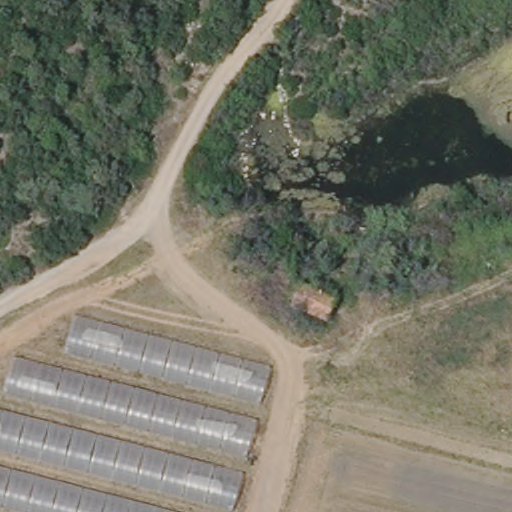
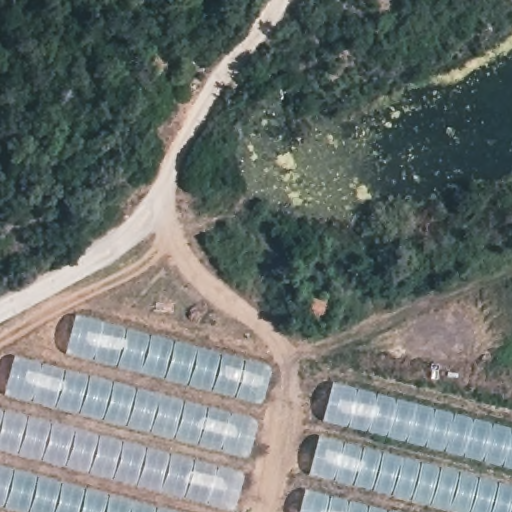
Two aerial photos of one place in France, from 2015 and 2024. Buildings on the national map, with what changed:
unchanged [(325,328),(294,313),(303,290),(335,305),(325,328)]
unchanged [(0,399),(7,401),(17,352),(66,362),(77,312),(278,362),(239,512),(0,512),(0,399)]
new [(332,380),(512,426),(512,469),(322,420),(332,380)]
new [(317,435),(512,485),(512,512),(453,512),(421,504),(308,473),(317,435)]
new [(304,489),(397,512),(298,512),(304,489)]

